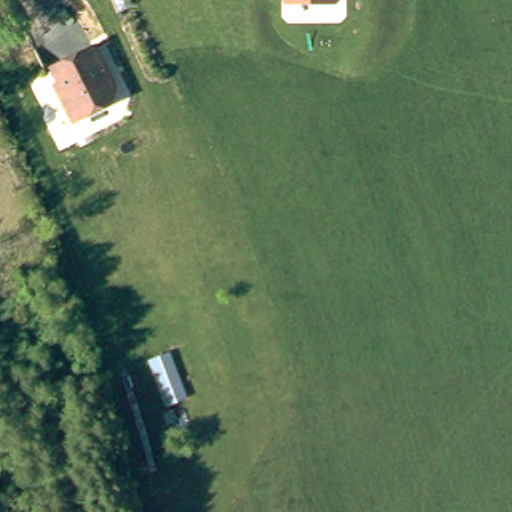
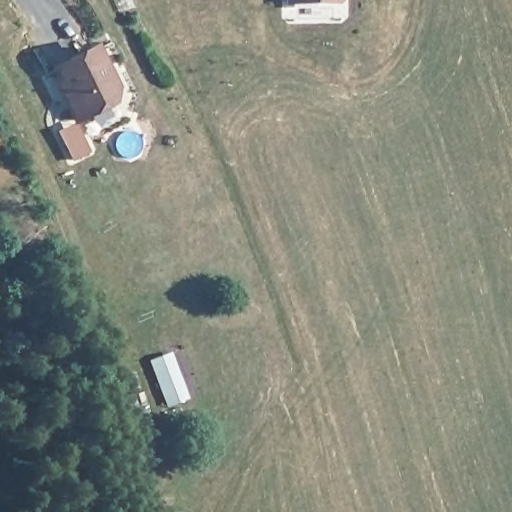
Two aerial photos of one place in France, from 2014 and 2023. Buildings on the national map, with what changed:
unchanged [(282,6),(283,0),(339,0),(339,4),(282,6)]
unchanged [(112,46),(132,85),(128,100),(93,118),(83,99),(80,100),(72,85),(80,81),(72,67),(112,46)]

